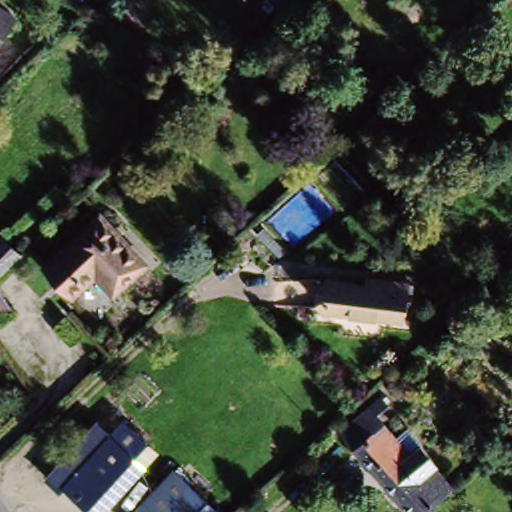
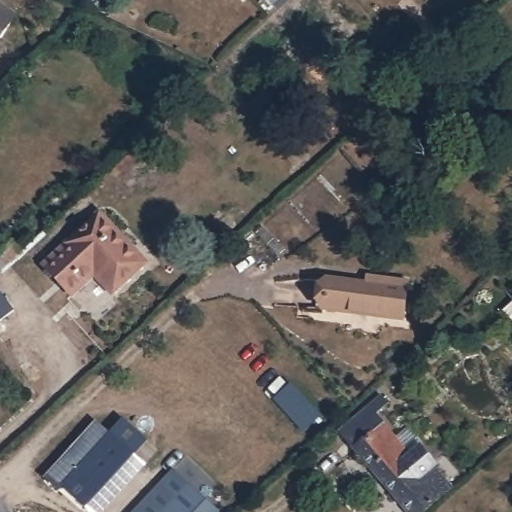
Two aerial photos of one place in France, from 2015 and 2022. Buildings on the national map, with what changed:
unchanged [(0,35),(0,5),(14,15),(0,35)]
unchanged [(45,264),(99,213),(145,260),(115,290),(97,272),(75,294),(45,264)]
unchanged [(21,252),(0,272),(0,233),(2,231),(21,252)]
unchanged [(362,281),(374,283),(402,287),(396,325),(318,313),(322,283),(361,289),(362,281)]
unchanged [(0,320),(0,293),(12,313),(0,320)]
new [(274,398),(291,383),(322,417),(304,432),(274,398)]
unchanged [(435,462),(431,463),(412,479),(431,464),(447,483),(415,512),(408,512),(352,449),(337,433),(364,409),(374,399),(376,398),(381,404),(379,406),(369,414),(379,424),(406,455),(421,445),(435,462)]
unchanged [(96,422),(110,434),(63,487),(61,490),(47,478),(96,422)]
unchanged [(142,464),(98,512),(90,512),(63,487),(110,434),(142,464)]
unchanged [(170,471),(184,484),(183,485),(158,512),(132,512),(170,471)]
unchanged [(183,485),(212,512),(158,512),(183,485)]

